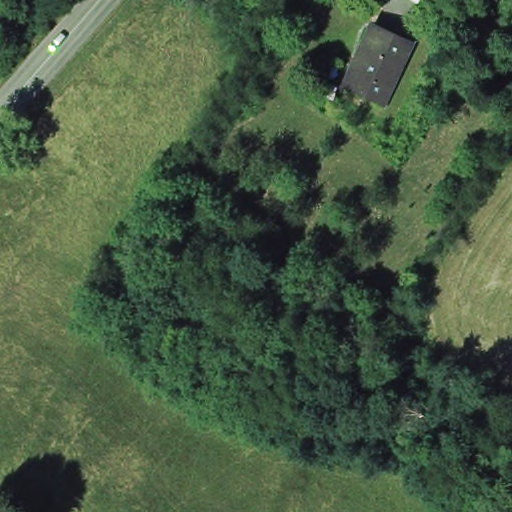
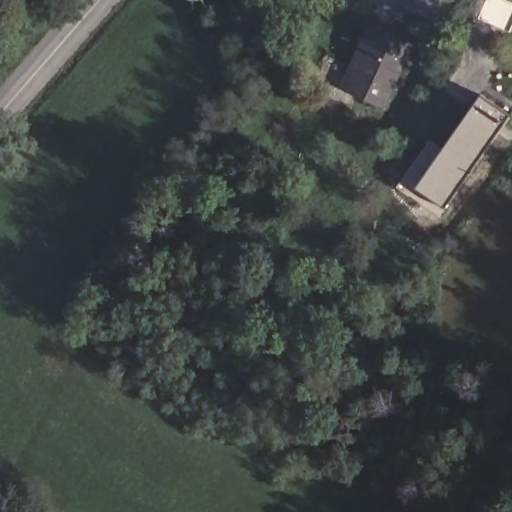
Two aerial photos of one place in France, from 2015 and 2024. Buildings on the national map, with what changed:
unchanged [(372,26),(406,43),(380,96),(346,80),(372,26)]
new [(480,95),(508,114),(442,208),(414,187),(480,95)]

